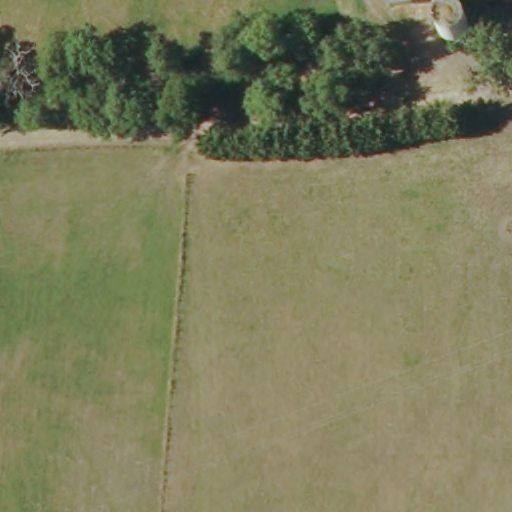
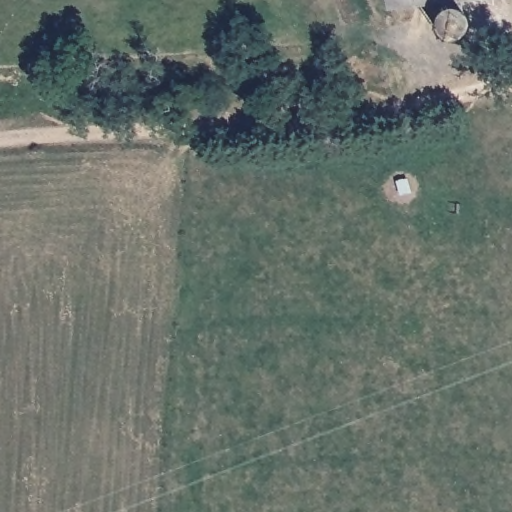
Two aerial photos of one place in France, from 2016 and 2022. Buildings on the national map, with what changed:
unchanged [(387,10),(386,0),(477,0),(387,10)]
unchanged [(460,19),(464,29),(463,39),(454,48),(443,50),(434,44),(430,36),(431,25),(438,16),(447,13),(460,19)]

